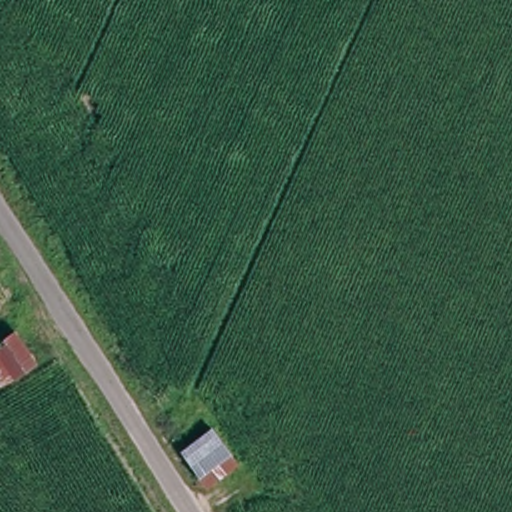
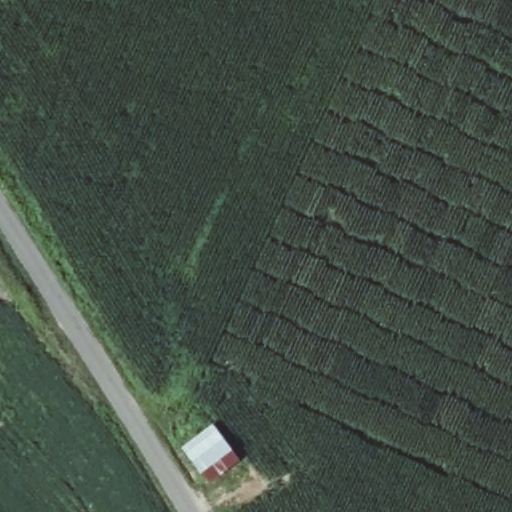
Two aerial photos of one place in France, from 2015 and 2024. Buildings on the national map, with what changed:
demolished [(35,354),(0,381),(0,332),(12,322),(35,354)]
unchanged [(239,457),(205,481),(177,446),(209,420),(239,457)]

